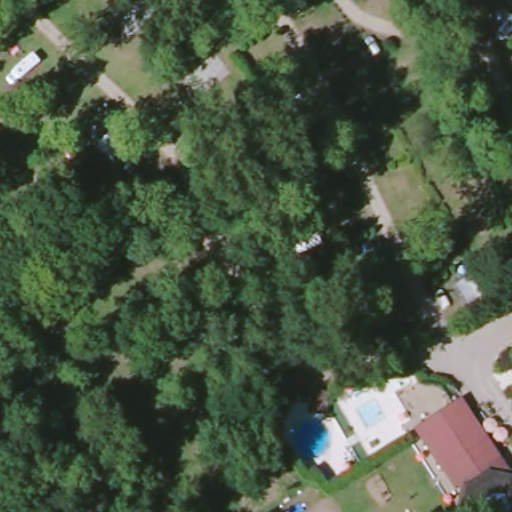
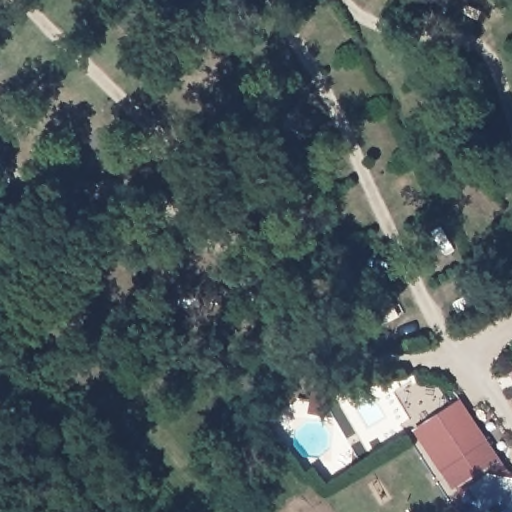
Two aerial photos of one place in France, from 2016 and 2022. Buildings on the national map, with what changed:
unchanged [(506,367),(512,364),(512,378),(506,367)]
unchanged [(488,473),(510,472),(512,475),(512,512),(460,512),(452,499),(457,495),(443,471),(439,476),(411,432),(450,404),(480,449),(488,473)]

